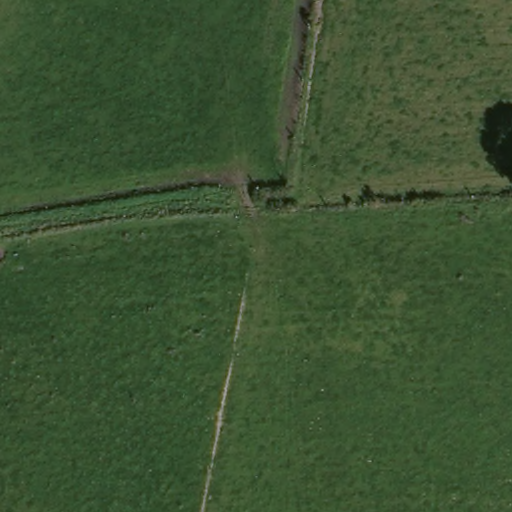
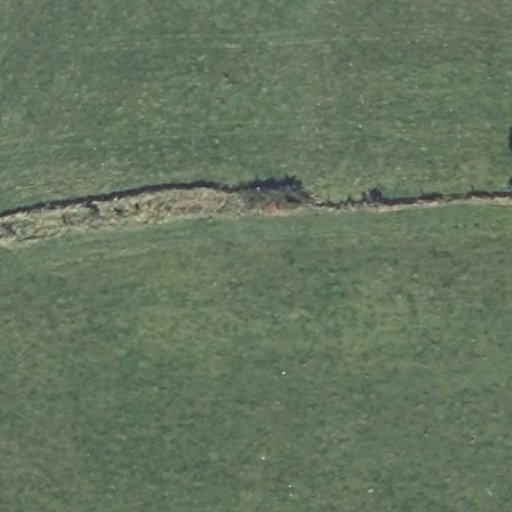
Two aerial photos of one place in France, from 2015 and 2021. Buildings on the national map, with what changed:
[]

